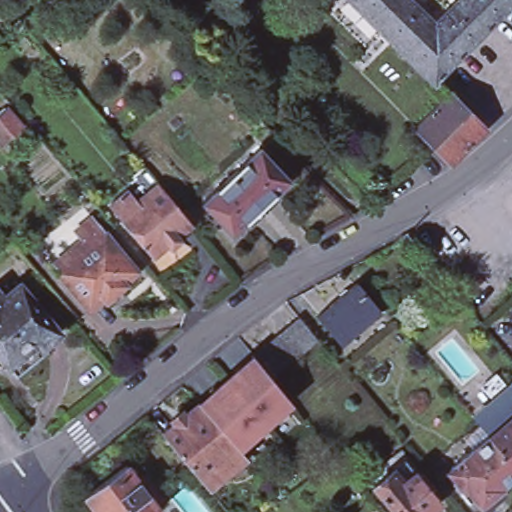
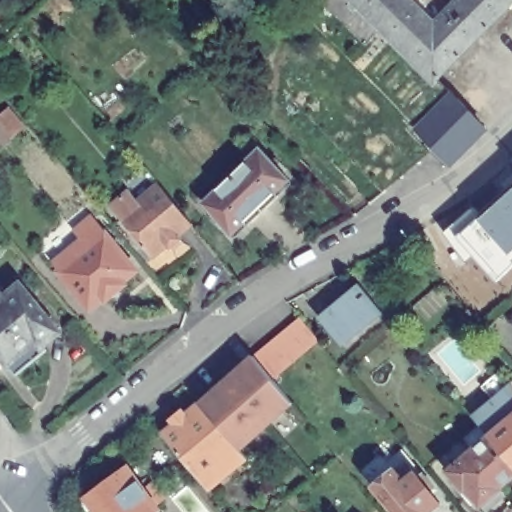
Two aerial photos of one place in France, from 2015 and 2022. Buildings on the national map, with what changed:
unchanged [(435,82),(433,80),(352,0),(512,0),(512,4),(437,81),(435,82)]
unchanged [(452,88),(491,122),(452,162),(415,127),(452,88)]
unchanged [(10,112),(23,127),(3,145),(0,140),(0,120),(10,112)]
unchanged [(260,149),(291,181),(277,194),(280,196),(248,225),(246,223),(232,236),(203,204),(260,149)]
unchanged [(156,191),(152,186),(160,180),(194,220),(179,232),(181,235),(171,244),(169,241),(155,253),(120,213),(110,201),(128,186),(138,197),(142,202),(156,191)]
new [(512,265),(495,282),(455,237),(512,182),(512,265)]
unchanged [(125,277),(127,280),(106,297),(105,295),(91,306),(60,269),(70,261),(66,257),(64,254),(77,242),(82,249),(88,244),(75,227),(93,213),(95,216),(106,229),(138,266),(125,277)]
unchanged [(5,298),(22,284),(36,302),(38,300),(50,314),(48,315),(63,333),(45,348),(47,351),(19,375),(0,352),(0,293),(5,298)]
unchanged [(325,316),(326,317),(362,290),(361,288),(363,286),(386,316),(346,347),(323,317),(325,316)]
unchanged [(271,347),(282,337),(294,327),(305,317),(324,340),(312,350),(301,359),(289,369),(278,378),(260,356),(271,347)]
unchanged [(260,358),(292,397),(297,403),(246,451),(207,407),(260,358)]
unchanged [(504,492),(487,506),(485,506),(451,466),(461,457),(460,456),(473,445),(465,435),(480,422),(474,415),(512,383),(512,474),(500,483),(504,488),(504,492)]
unchanged [(182,424),(185,428),(193,422),(190,418),(205,406),(207,407),(246,451),(253,458),(214,490),(168,435),(182,424)]
unchanged [(435,512),(400,512),(379,487),(398,471),(410,462),(420,474),(445,504),(435,512)]
unchanged [(127,465),(160,511),(158,512),(97,512),(85,496),(127,465)]

